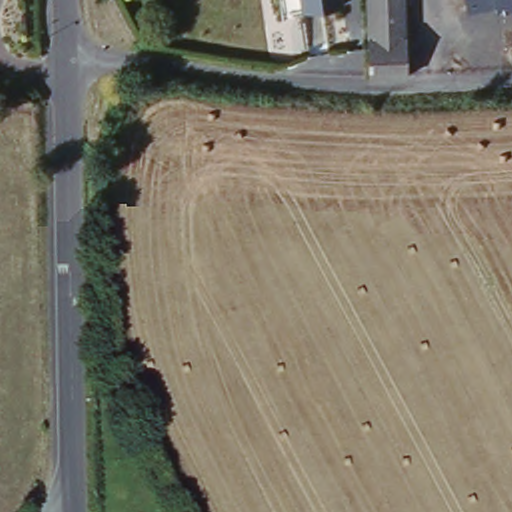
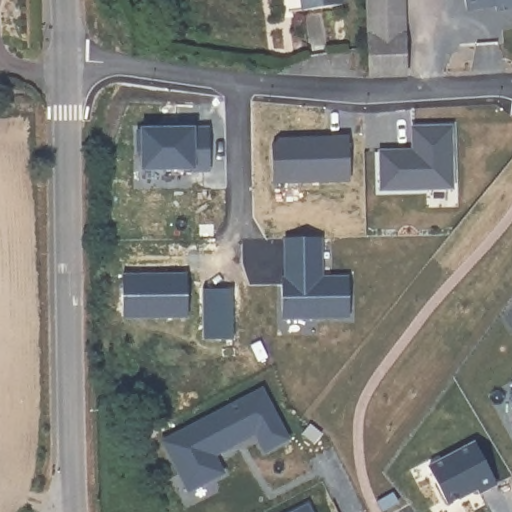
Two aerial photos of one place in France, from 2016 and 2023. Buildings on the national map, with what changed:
unchanged [(342,0),(342,4),(302,9),(301,0),(342,0)]
unchanged [(403,0),(405,66),(405,70),(405,71),(369,72),(367,0),(403,0)]
unchanged [(496,4),(468,8),(467,0),(512,0),(512,7),(497,9),(496,4)]
new [(193,172),(193,169),(144,169),(144,152),(139,152),(139,129),(177,129),(177,124),(195,124),(195,129),(211,128),(212,171),(193,172)]
new [(381,151),(398,150),(399,157),(414,157),(413,127),(452,126),(454,188),(381,189),(381,151)]
new [(272,146),(278,139),(334,138),(334,136),(350,136),(352,180),(273,183),(272,146)]
new [(322,238),(322,276),(350,277),(351,317),(283,318),(283,278),(295,278),(295,269),(286,269),(287,238),(322,238)]
new [(189,274),(190,317),(125,318),(124,275),(189,274)]
new [(204,289),(234,289),(234,339),(204,339),(204,289)]
new [(263,389),(289,439),(266,451),(257,433),(215,454),(224,472),(190,490),(164,441),(263,389)]
new [(512,393),(512,396),(510,394),(512,393)]
new [(476,443),(498,484),(480,493),(477,489),(448,504),(429,467),(476,443)]
new [(400,502),(383,512),(378,502),(394,492),(400,502)]
new [(308,506),(312,512),(296,512),(308,506)]

